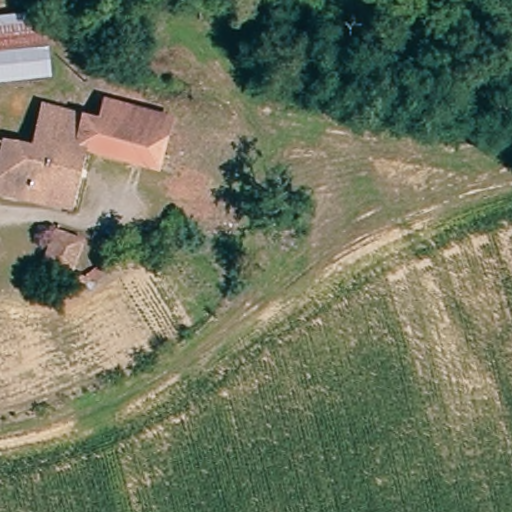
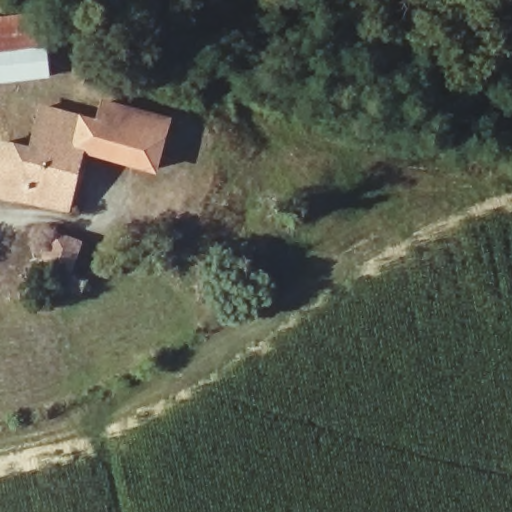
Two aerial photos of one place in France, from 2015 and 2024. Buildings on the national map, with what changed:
unchanged [(42,15),(46,44),(0,50),(0,20),(42,15)]
unchanged [(46,44),(50,76),(0,82),(0,50),(46,44)]
unchanged [(4,122),(0,139),(38,149),(45,109),(49,110),(94,121),(99,101),(199,126),(192,166),(159,159),(157,170),(82,153),(68,212),(0,197),(0,122),(4,122)]
unchanged [(50,238),(83,245),(76,288),(43,282),(50,238)]

